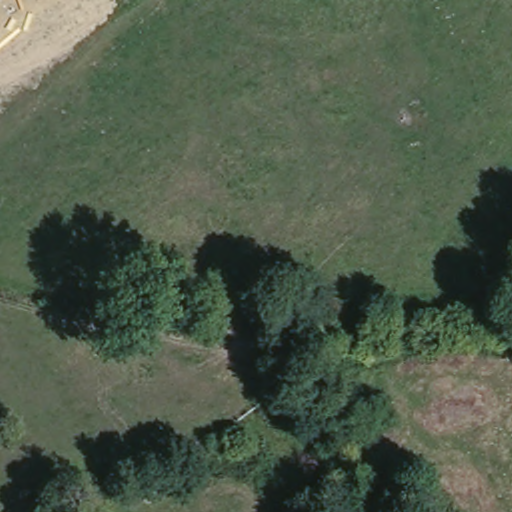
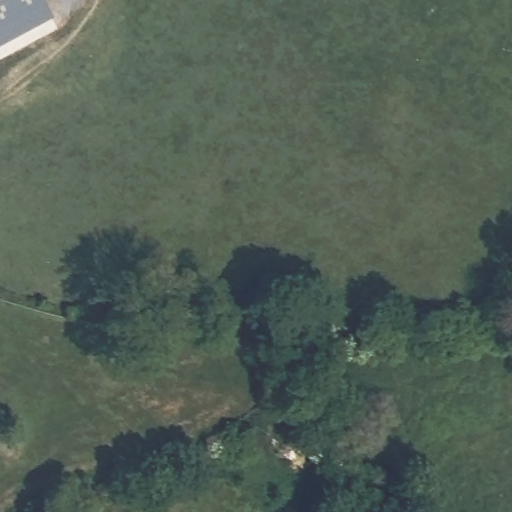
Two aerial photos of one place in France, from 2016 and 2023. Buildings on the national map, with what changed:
new [(50,22),(0,48),(0,0),(38,0),(50,22)]

